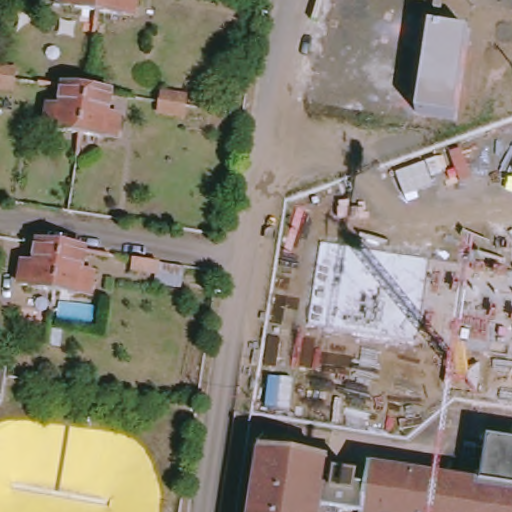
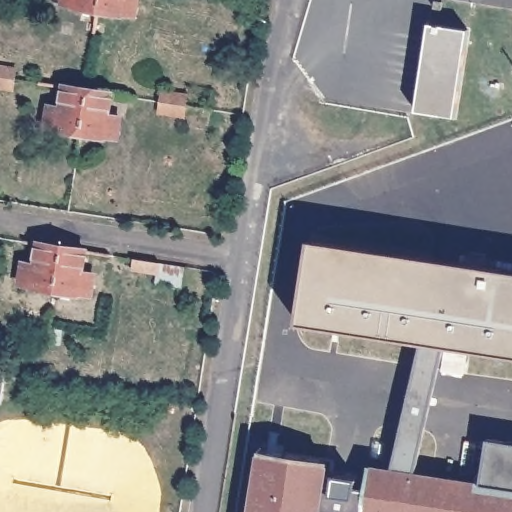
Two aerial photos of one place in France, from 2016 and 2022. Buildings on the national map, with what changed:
unchanged [(88,13),(65,10),(66,7),(53,6),(55,0),(91,0),(88,13)]
unchanged [(125,18),(111,16),(111,19),(88,13),(91,0),(128,0),(125,18)]
unchanged [(468,30),(456,118),(415,112),(429,24),(468,30)]
unchanged [(0,84),(0,65),(17,67),(14,77),(13,86),(0,84)]
unchanged [(159,109),(160,100),(163,89),(188,94),(187,104),(186,114),(159,109)]
unchanged [(78,94),(72,136),(49,133),(50,130),(36,128),(39,109),(52,111),(55,90),(75,93),(78,94)]
unchanged [(103,97),(99,118),(113,121),(109,140),(96,138),(96,140),(72,136),(78,94),(103,97)]
new [(415,474),(393,470),(423,340),(301,323),(313,241),(512,271),(512,354),(442,342),(415,474)]
unchanged [(48,292),(23,289),(23,287),(10,284),(15,264),(26,266),(31,245),(54,249),(48,292)]
unchanged [(78,252),(74,273),(87,275),(84,296),(71,294),(70,297),(48,292),(54,249),(78,252)]
unchanged [(162,259),(160,269),(136,264),(137,254),(162,259)]
unchanged [(512,443),(512,489),(489,485),(482,484),(489,439),(512,443)]
unchanged [(322,482),(331,483),(334,471),(354,475),(351,487),(361,488),(364,466),(512,489),(512,512),(250,512),(260,449),(325,461),(322,482)]

